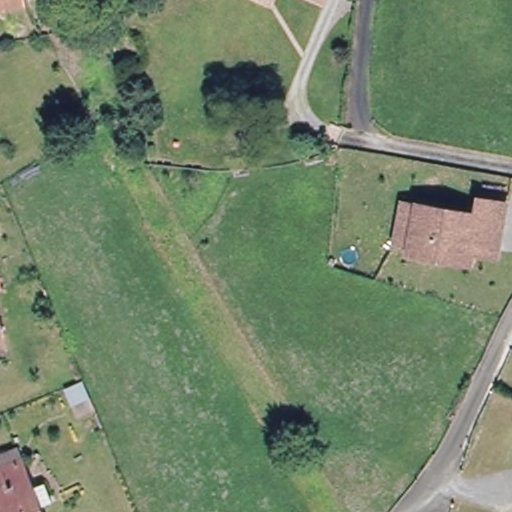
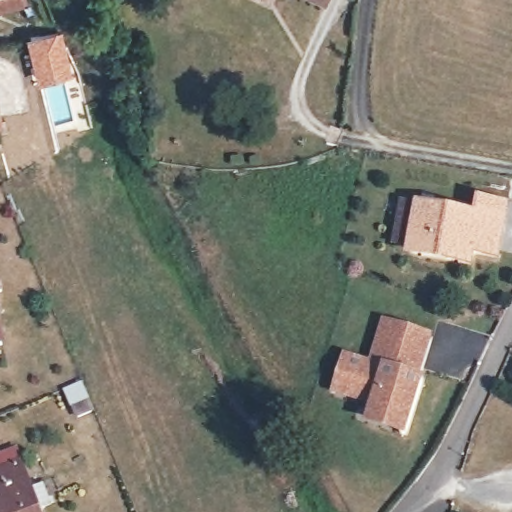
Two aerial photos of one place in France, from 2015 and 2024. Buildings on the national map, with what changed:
unchanged [(0,24),(0,0),(16,0),(20,20),(0,24)]
new [(61,32),(74,75),(37,84),(25,40),(61,32)]
unchanged [(481,196),(509,201),(500,254),(471,249),(469,259),(407,251),(408,242),(396,241),(402,203),(414,204),(477,213),(481,196)]
new [(432,334),(419,375),(422,377),(404,439),(362,426),(368,406),(330,396),(342,353),(368,361),(381,318),(432,334)]
unchanged [(0,466),(15,461),(35,512),(0,512),(0,466)]

